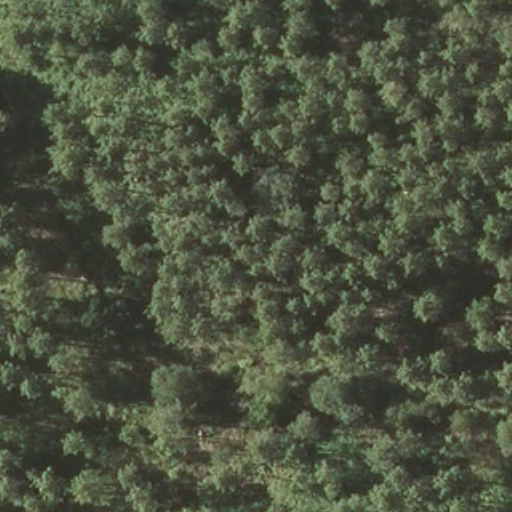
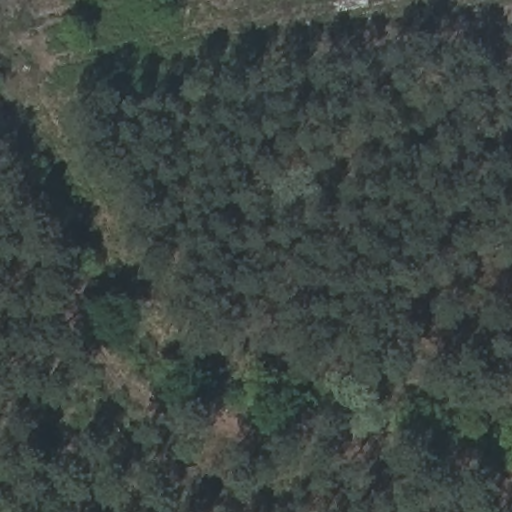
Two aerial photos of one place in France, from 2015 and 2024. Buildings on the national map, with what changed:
[]

